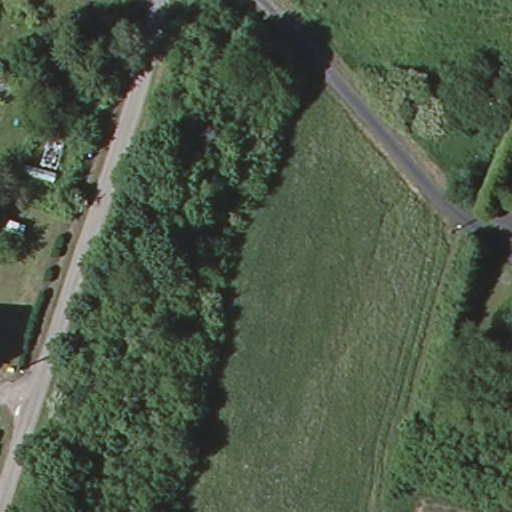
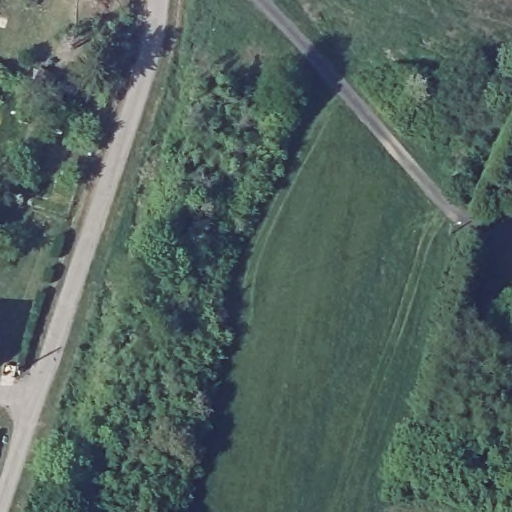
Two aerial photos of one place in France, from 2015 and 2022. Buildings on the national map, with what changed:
unchanged [(57,75),(48,100),(29,93),(37,68),(57,75)]

